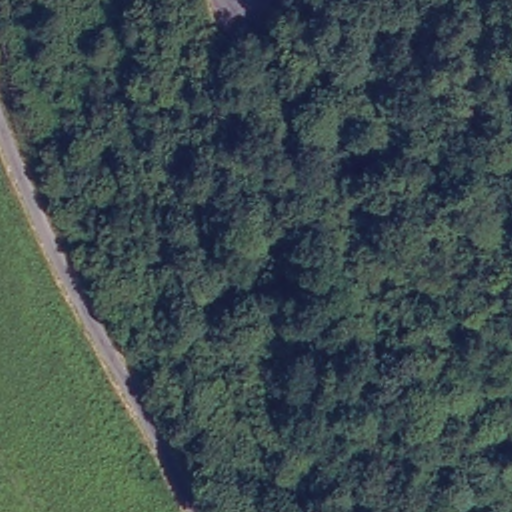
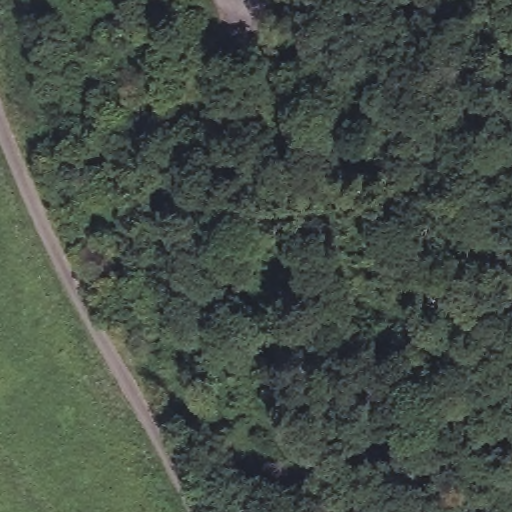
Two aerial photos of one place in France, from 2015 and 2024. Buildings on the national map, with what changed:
[]

